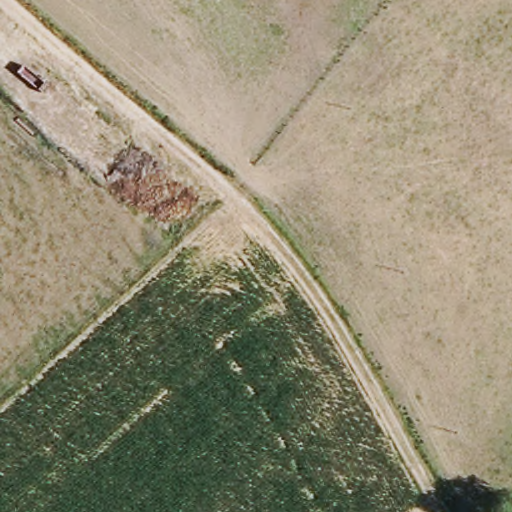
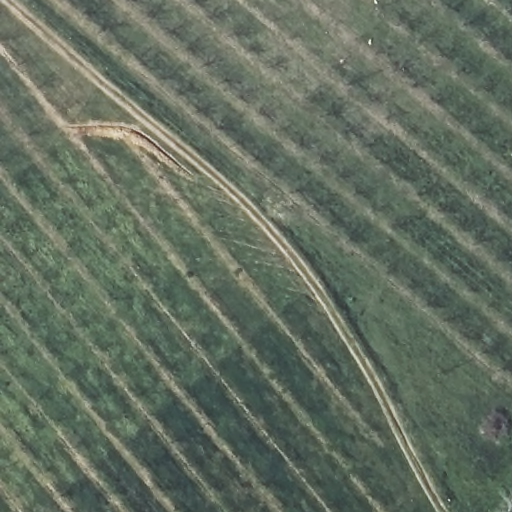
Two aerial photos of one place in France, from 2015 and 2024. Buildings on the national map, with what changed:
[]

